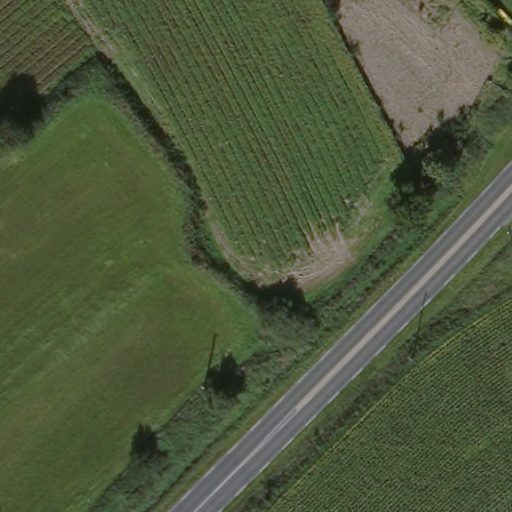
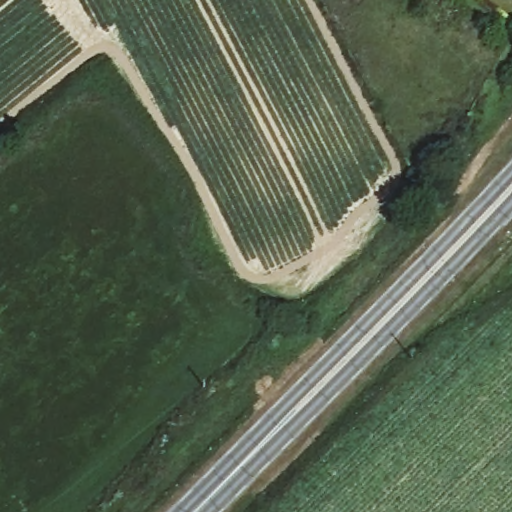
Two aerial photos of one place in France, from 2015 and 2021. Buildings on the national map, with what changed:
unchanged [(272,346),(265,337),(274,331),(280,340),(272,346)]

